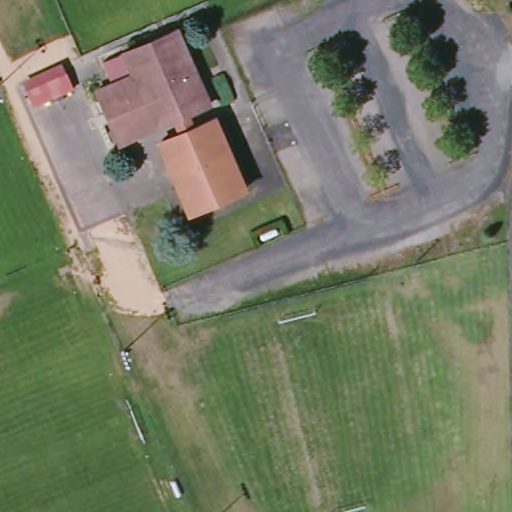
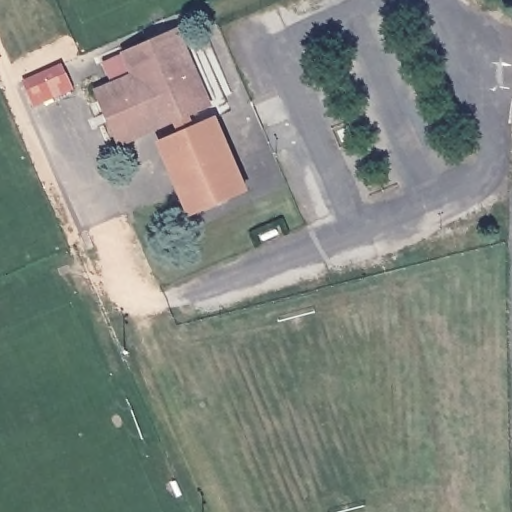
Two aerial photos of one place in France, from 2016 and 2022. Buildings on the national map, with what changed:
unchanged [(96,91),(111,84),(102,64),(176,31),(208,104),(118,143),(96,91)]
unchanged [(27,93),(69,75),(75,90),(33,108),(27,93)]
unchanged [(214,118),(244,189),(188,213),(158,141),(214,118)]

